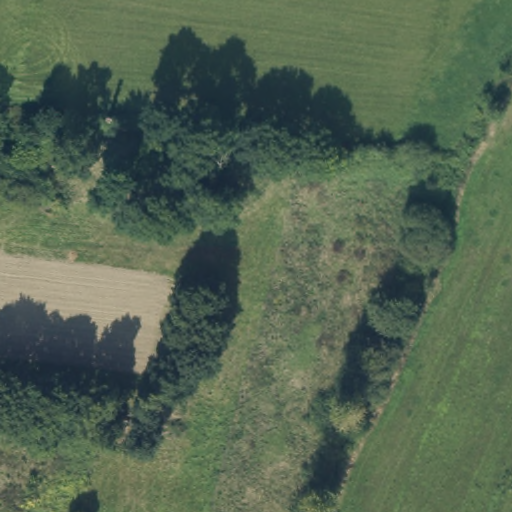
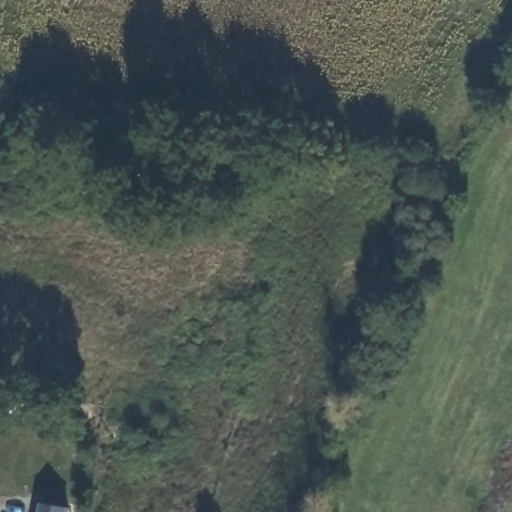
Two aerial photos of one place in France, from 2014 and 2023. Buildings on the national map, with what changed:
new [(71,512),(39,512),(41,502),(72,509),(71,512)]

